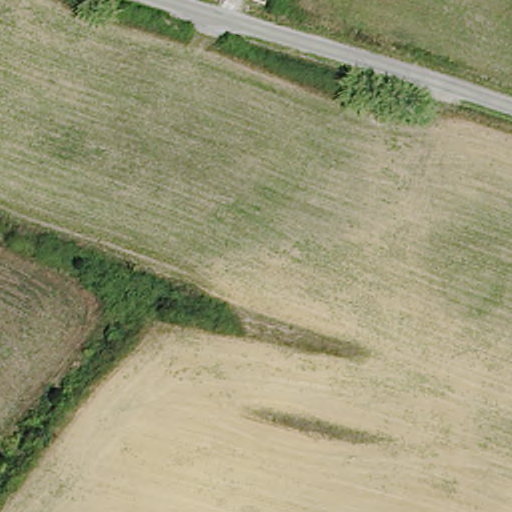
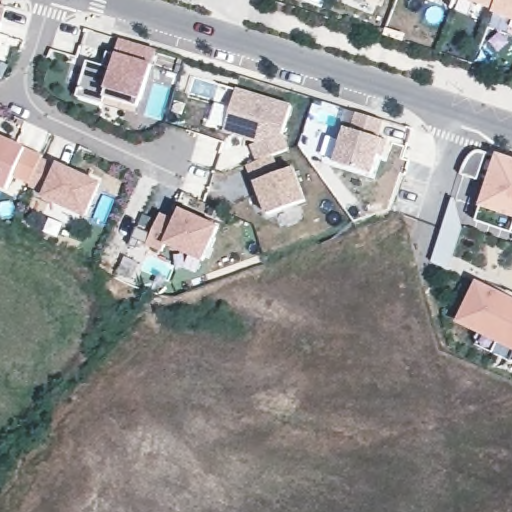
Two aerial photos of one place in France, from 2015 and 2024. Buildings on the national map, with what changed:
new [(492,7),(473,0),(495,0),(492,7)]
new [(495,0),(512,0),(512,18),(492,10),(492,7),(495,0)]
new [(96,91),(94,98),(67,90),(78,55),(94,60),(96,54),(98,46),(107,49),(111,34),(147,45),(132,94),(130,101),(96,91)]
new [(238,88),(292,105),(284,132),(291,150),(274,155),(281,173),(296,168),(308,201),(268,216),(254,182),(246,165),(257,162),(251,146),(258,144),(224,133),(238,88)]
new [(385,122),(383,140),(389,141),(383,160),(379,157),(374,175),(335,162),(345,127),(352,130),(357,112),(385,122)]
new [(33,182),(15,174),(8,189),(0,186),(0,137),(44,157),(33,182)]
new [(455,163),(459,156),(467,146),(470,144),(479,147),(470,175),(453,170),(455,163)]
new [(512,158),(512,211),(475,199),(491,151),(512,158)]
new [(42,161),(59,169),(60,166),(101,185),(87,216),(46,198),(48,194),(31,186),(42,161)]
new [(454,221),(441,262),(425,257),(445,193),(454,221)]
new [(512,211),(512,229),(470,215),(475,199),(512,211)]
new [(218,225),(202,261),(166,245),(163,252),(140,242),(136,250),(130,246),(138,227),(152,234),(162,214),(176,219),(181,209),(218,225)]
new [(453,316),(471,279),(512,299),(512,344),(453,316)]
new [(499,292),(502,285),(512,290),(512,298),(499,292)]
new [(510,343),(504,355),(470,338),(475,327),(510,343)]

